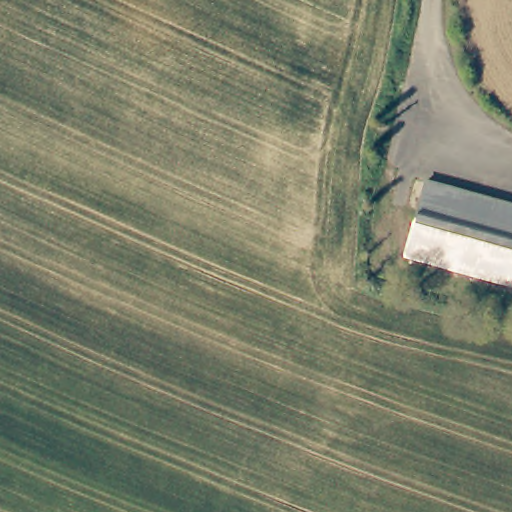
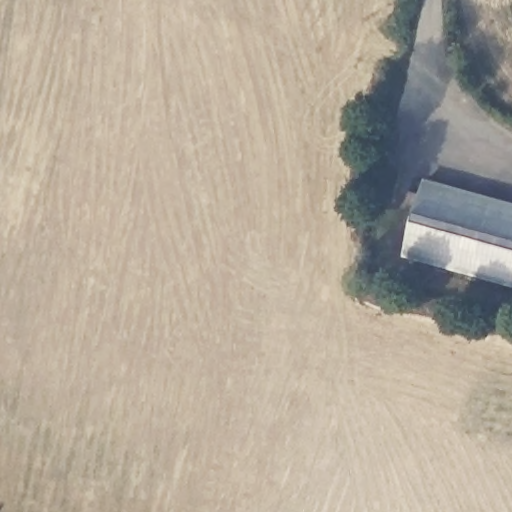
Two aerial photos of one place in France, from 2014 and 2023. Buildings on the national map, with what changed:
unchanged [(424,180),(512,204),(512,285),(403,255),(424,180)]

